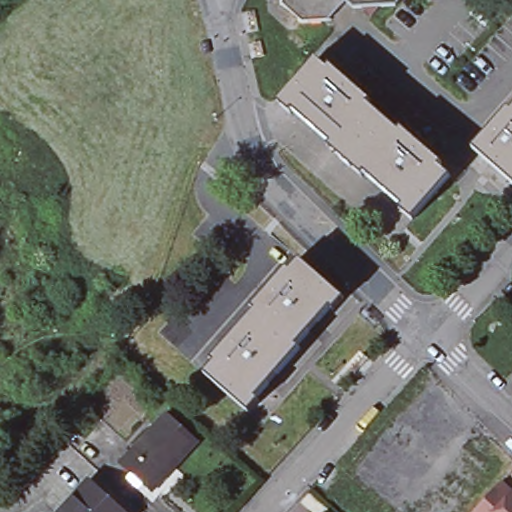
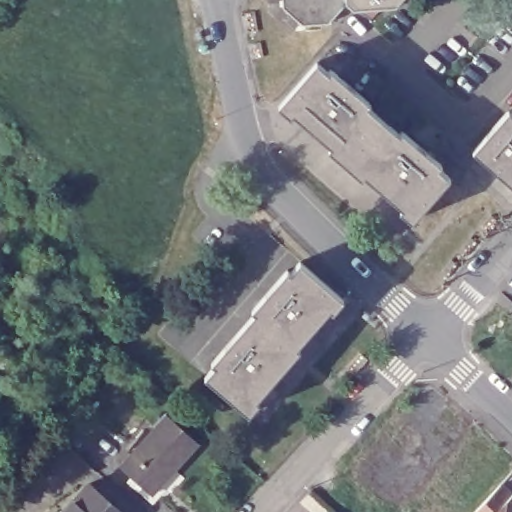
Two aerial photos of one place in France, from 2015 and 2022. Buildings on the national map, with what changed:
unchanged [(281,0),(367,0),(381,11),(373,20),(365,13),(354,14),(345,6),(328,25),(302,27),(281,9),(281,0)]
unchanged [(395,11),(381,11),(367,0),(404,0),(395,11)]
unchanged [(334,146),(296,112),(293,116),(281,105),(319,62),(330,72),(333,69),(372,104),(369,106),(400,134),(403,130),(442,165),(440,168),(451,177),(413,220),(402,211),(404,207),(367,175),(363,178),(331,150),(334,146)]
unchanged [(509,115),(512,111),(512,182),(474,148),(506,111),(509,115)]
unchanged [(214,368),(211,365),(254,315),(250,312),(285,272),(288,275),(298,263),(341,300),(330,312),(328,310),(294,349),(298,352),(256,400),(258,402),(248,415),(206,378),(214,368)]
unchanged [(165,413),(197,443),(150,492),(119,464),(165,413)]
unchanged [(121,512),(59,512),(87,481),(121,512)]
unchanged [(502,483),(504,485),(512,493),(512,512),(475,512),(492,494),(502,483)]

